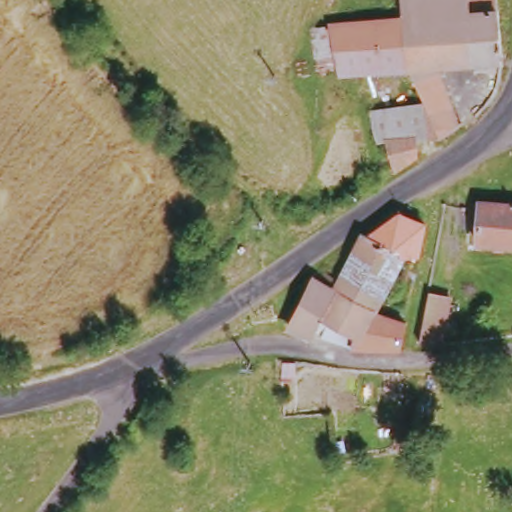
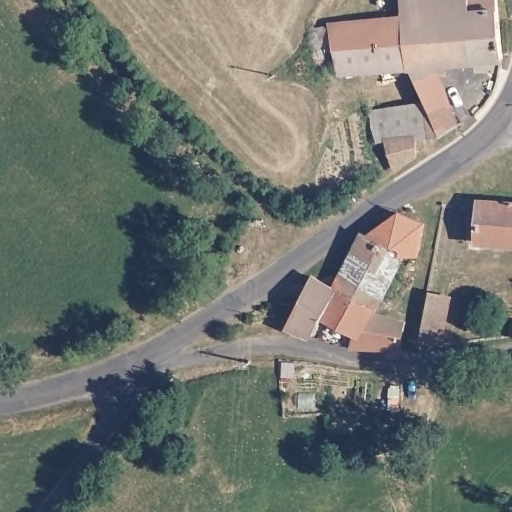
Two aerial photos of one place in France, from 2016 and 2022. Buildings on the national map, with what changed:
unchanged [(441,135),(414,135),(414,153),(396,168),(385,138),(380,140),(371,110),(418,91),(411,65),(337,71),(322,72),(316,26),(333,25),(402,19),(400,0),(497,0),(501,58),(437,65),(455,123),(441,135)]
unchanged [(478,243),(478,200),(512,203),(512,246),(478,243)]
unchanged [(361,240),(368,242),(406,253),(371,310),(333,293),(361,240)]
unchanged [(263,248),(266,255),(260,258),(256,252),(263,248)]
unchanged [(371,310),(405,326),(402,353),(347,351),(288,333),(298,315),(309,282),(333,293),(371,310)]
unchanged [(448,300),(438,348),(415,344),(425,295),(448,300)]

